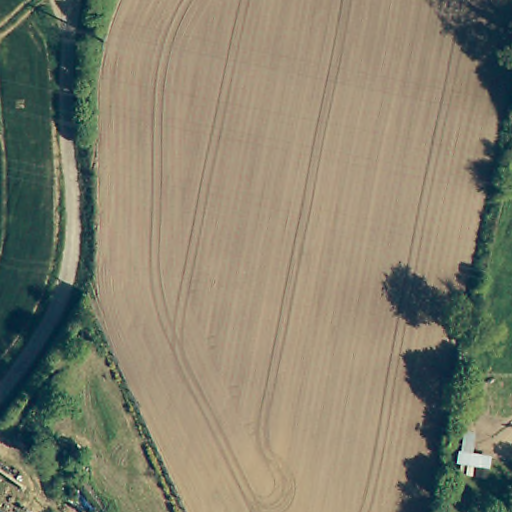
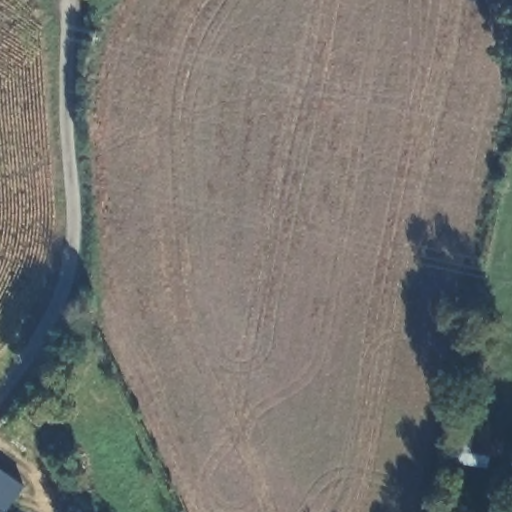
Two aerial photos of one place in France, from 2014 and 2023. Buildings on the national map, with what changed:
new [(4,512),(0,512),(0,467),(23,484),(4,512)]

